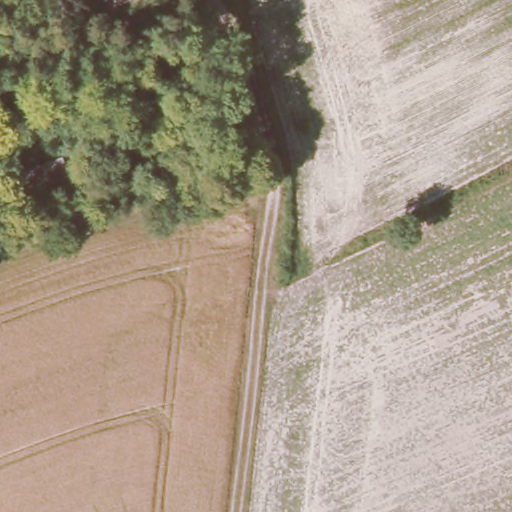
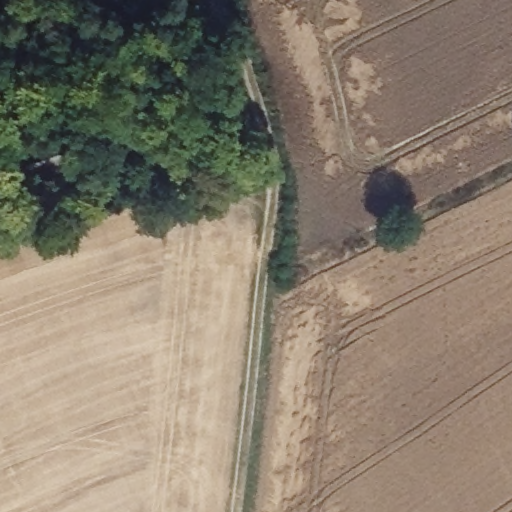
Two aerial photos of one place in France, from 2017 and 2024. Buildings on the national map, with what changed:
unchanged [(57,195),(61,207),(43,214),(31,180),(70,165),(79,187),(57,195)]

